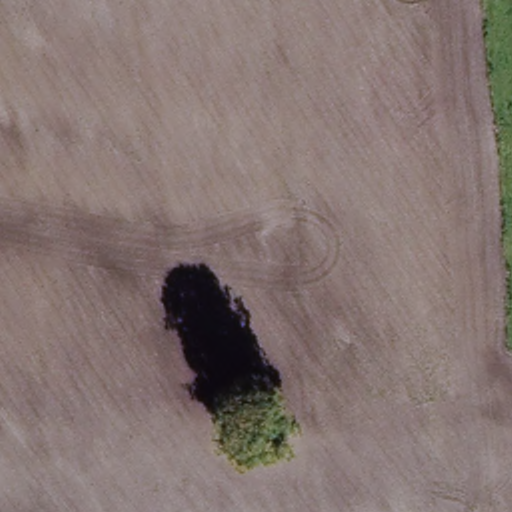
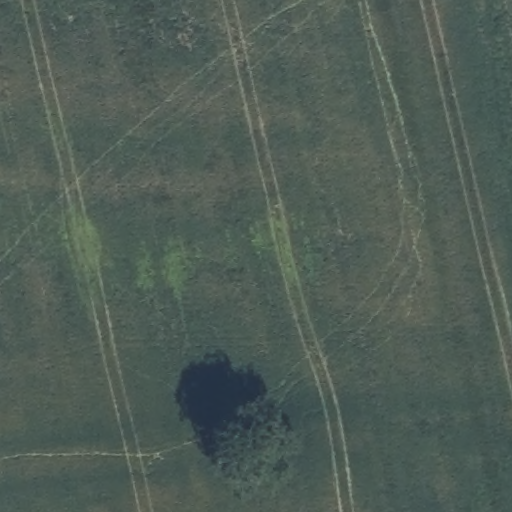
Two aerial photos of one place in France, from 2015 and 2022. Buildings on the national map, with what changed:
[]

